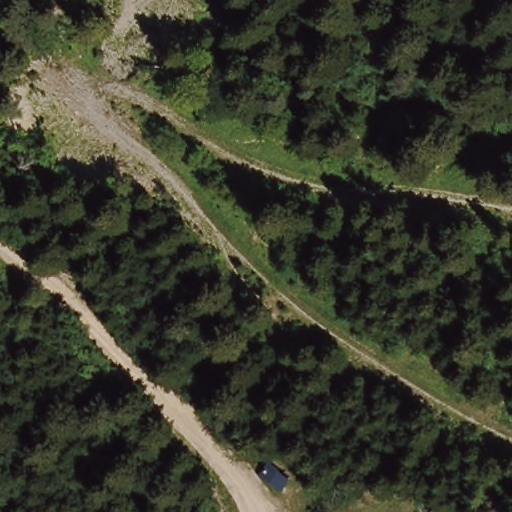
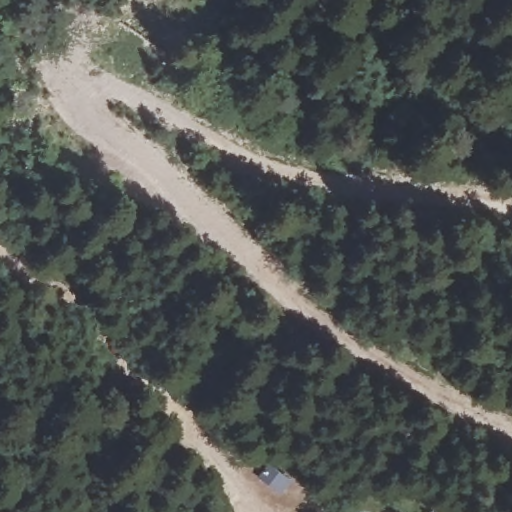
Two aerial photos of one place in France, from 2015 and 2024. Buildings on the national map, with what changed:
unchanged [(295,483),(285,498),(261,480),(271,466),(295,483)]

